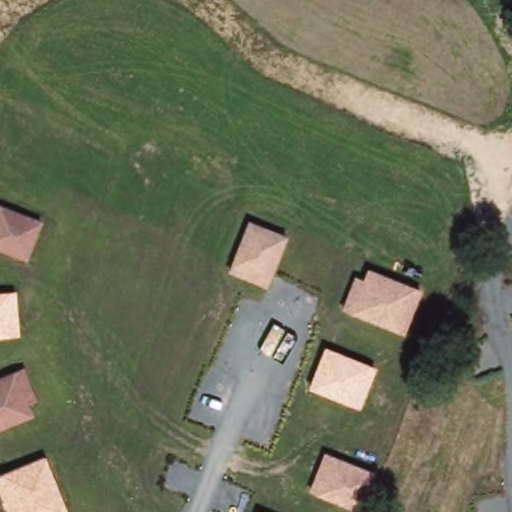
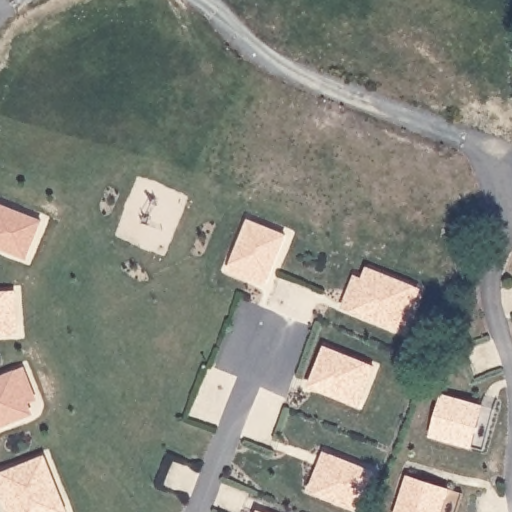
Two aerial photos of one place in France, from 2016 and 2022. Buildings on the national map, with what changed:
unchanged [(28,256),(0,245),(0,202),(43,219),(28,256)]
unchanged [(236,252),(251,215),(288,230),(269,278),(263,275),(232,263),(236,252)]
unchanged [(395,321),(385,316),(325,292),(327,285),(337,261),(348,266),(352,255),(401,275),(412,280),(395,321)]
unchanged [(19,333),(0,335),(0,291),(16,290),(19,333)]
unchanged [(308,387),(325,345),(376,365),(359,407),(308,387)]
unchanged [(27,373),(37,396),(26,401),(31,412),(0,425),(0,376),(24,365),(27,373)]
new [(471,447),(430,436),(442,393),(482,403),(471,447)]
unchanged [(378,471),(363,509),(308,489),(324,450),(378,471)]
unchanged [(0,472),(45,455),(68,512),(8,512),(0,493),(0,472)]
new [(396,512),(407,475),(450,488),(442,512),(396,512)]
unchanged [(264,512),(257,512),(258,510),(264,512)]

